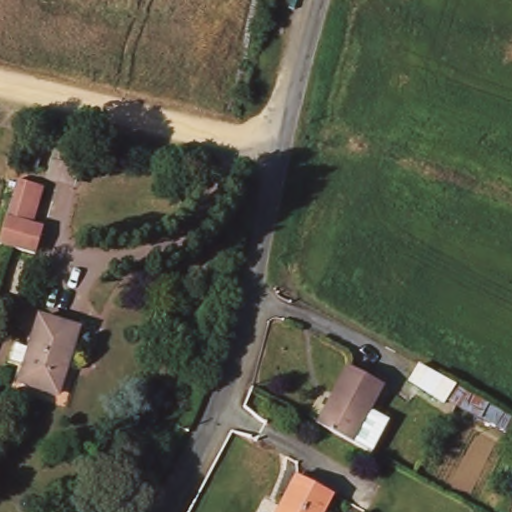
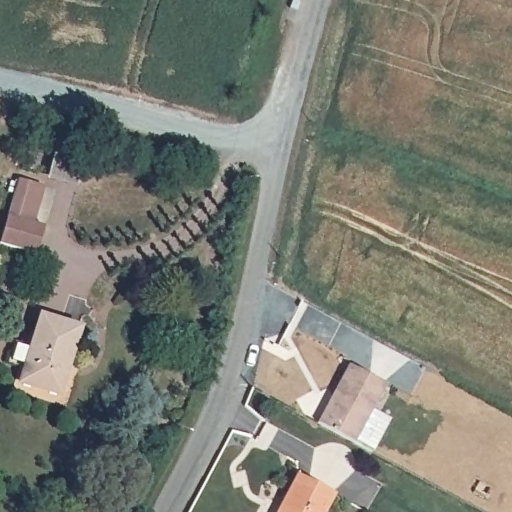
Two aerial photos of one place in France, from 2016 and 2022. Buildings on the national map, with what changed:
unchanged [(41,160),(36,182),(21,179),(26,158),(41,160)]
unchanged [(15,179),(43,189),(35,220),(45,223),(36,254),(0,244),(0,242),(8,212),(15,179)]
unchanged [(86,324),(66,388),(26,375),(46,312),(86,324)]
unchanged [(372,450),(353,440),(317,421),(347,363),(384,383),(370,409),(388,419),(372,450)]
unchanged [(484,421),(420,387),(431,372),(492,403),(484,421)]
unchanged [(338,496),(329,512),(283,512),(303,477),(338,496)]

